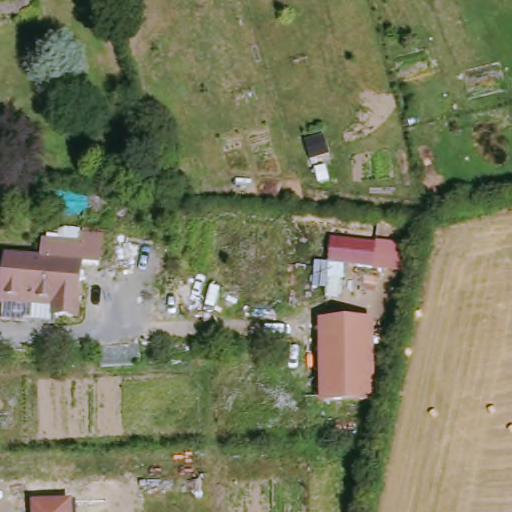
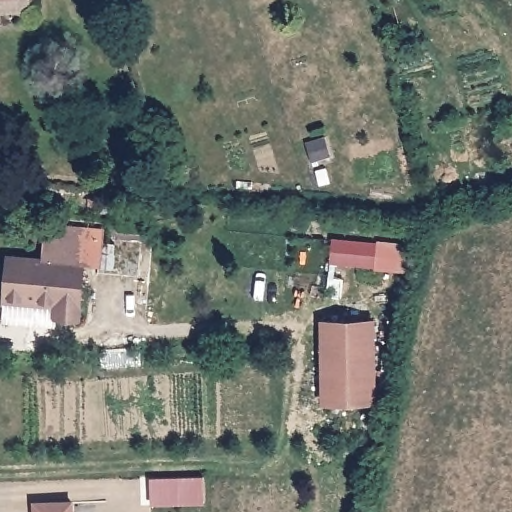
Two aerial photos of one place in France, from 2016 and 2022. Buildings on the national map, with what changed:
unchanged [(6,299),(10,257),(44,259),(45,245),(85,246),(85,237),(101,239),(100,268),(82,268),(78,319),(57,318),(57,309),(5,305),(6,299)]
unchanged [(332,237),(378,243),(415,247),(412,273),(375,270),(375,267),(330,263),(332,237)]
unchanged [(375,327),(373,406),(323,404),(325,325),(375,327)]
new [(198,480),(199,481),(201,482),(202,505),(151,507),(150,482),(198,480)]
unchanged [(75,502),(76,512),(33,512),(33,502),(75,502)]

